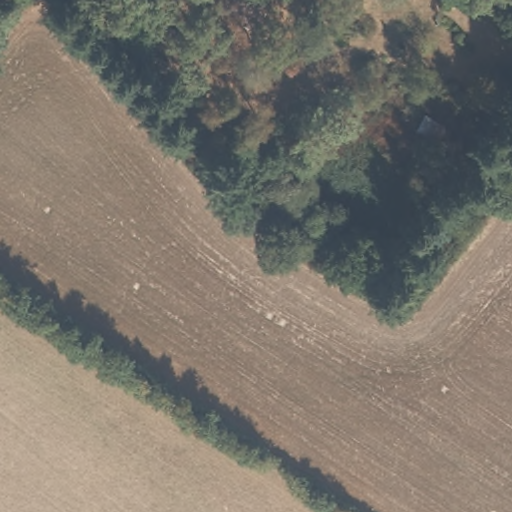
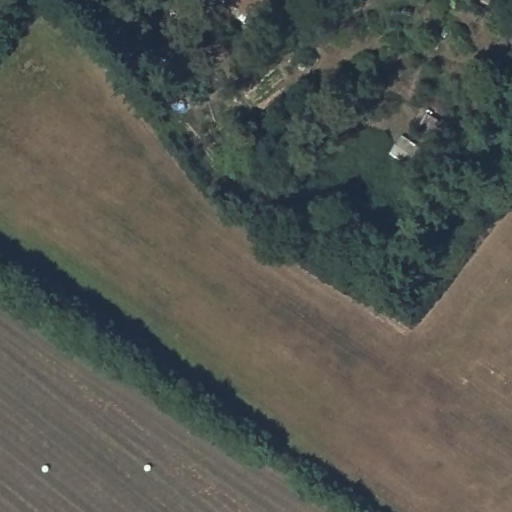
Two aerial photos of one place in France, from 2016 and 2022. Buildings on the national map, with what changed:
unchanged [(262,7),(243,27),(216,2),(211,7),(204,0),(254,0),(262,7)]
unchanged [(182,30),(171,50),(142,34),(152,16),(182,30)]
unchanged [(422,111),(447,127),(438,144),(411,132),(422,111)]

